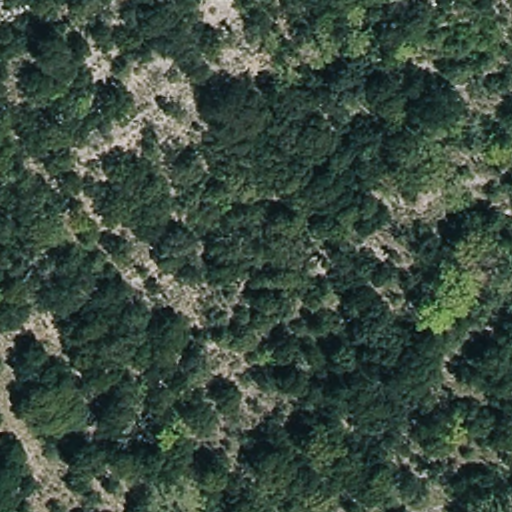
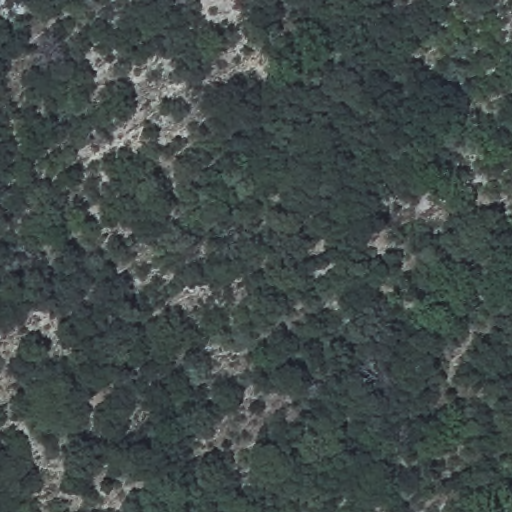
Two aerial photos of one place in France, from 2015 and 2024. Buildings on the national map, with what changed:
[]

